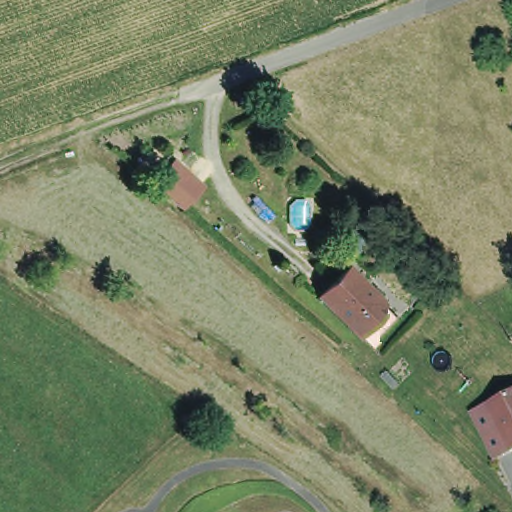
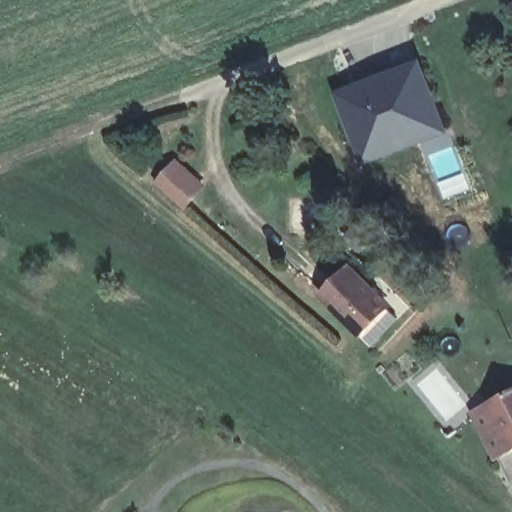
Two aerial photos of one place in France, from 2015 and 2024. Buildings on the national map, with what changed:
new [(449,133),(362,165),(335,92),(421,60),(449,133)]
new [(186,211),(155,184),(177,159),(208,185),(186,211)]
unchanged [(366,340),(358,332),(320,295),(346,268),(384,305),(381,309),(389,316),(366,340)]
unchanged [(512,448),(494,455),(469,410),(512,390),(512,448)]

